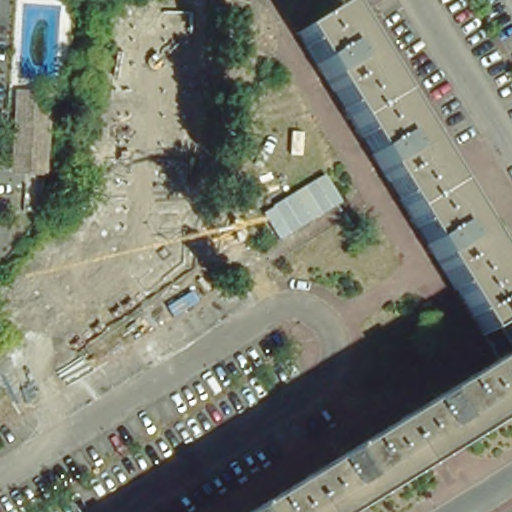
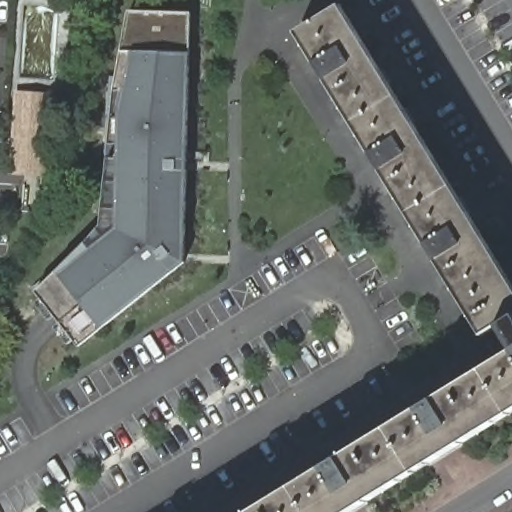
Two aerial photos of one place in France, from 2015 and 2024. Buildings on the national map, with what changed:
unchanged [(296,33),(323,16),(341,6),(348,17),(350,20),(357,32),(359,36),(368,51),(377,65),(380,69),(396,96),(352,124),(296,33)]
new [(98,224),(113,90),(127,10),(191,11),(182,262),(78,347),(33,292),(98,224)]
unchanged [(12,171),(17,108),(18,94),(49,95),(48,110),(43,173),(12,171)]
unchanged [(352,124),(396,96),(412,122),(435,160),(451,187),(407,214),(352,124)]
unchanged [(467,212),(499,263),(506,276),(512,285),(512,317),(497,326),(482,335),(407,214),(451,187),(467,212)]
demolished [(79,220),(104,247),(86,263),(79,270),(71,277),(64,284),(40,306),(32,313),(27,319),(19,326),(16,322),(0,305),(0,295),(79,220)]
unchanged [(512,317),(512,413),(509,414),(482,369),(496,360),(482,335),(497,326),(512,317)]
unchanged [(509,414),(461,444),(428,464),(414,472),(387,428),(482,369),(509,414)]
unchanged [(351,512),(308,512),(292,486),(387,428),(414,472),(367,502),(351,512)]
unchanged [(251,512),(292,486),(308,512),(251,512)]

